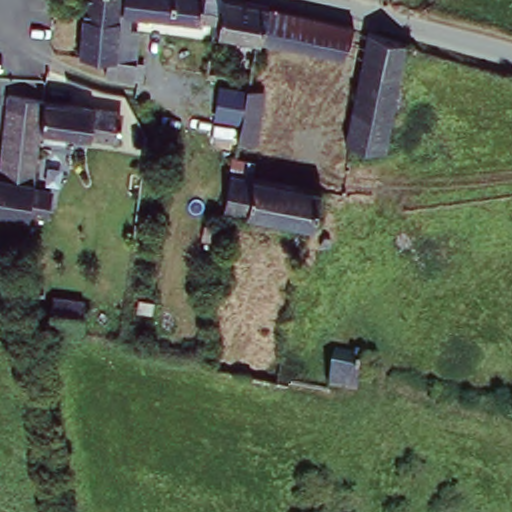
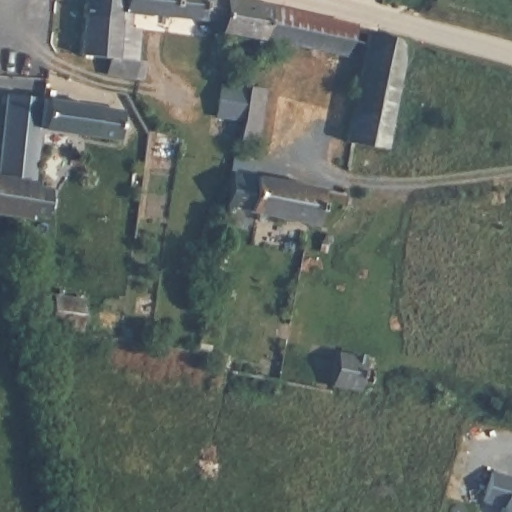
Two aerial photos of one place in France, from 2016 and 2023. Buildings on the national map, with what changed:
unchanged [(84,27),(87,0),(122,0),(115,45),(114,58),(137,61),(139,73),(105,66),(105,56),(80,51),(84,27)]
unchanged [(201,18),(129,14),(126,31),(131,36),(129,46),(115,45),(122,0),(223,0),(223,1),(270,8),(262,41),(225,36),(217,35),(213,34),(198,32),(201,18)]
unchanged [(349,56),(262,41),(270,8),(342,21),(357,26),(349,56)]
unchanged [(403,38),(382,145),(347,139),(362,58),(371,30),(403,38)]
unchanged [(245,117),(212,112),(219,84),(251,91),(245,117)]
unchanged [(265,91),(258,121),(246,142),(239,141),(240,135),(252,86),(265,91)]
unchanged [(25,208),(24,216),(0,212),(0,147),(7,111),(10,95),(39,98),(37,109),(120,109),(115,131),(34,133),(27,185),(46,190),(42,211),(25,208)]
unchanged [(230,165),(244,168),(242,176),(314,192),(307,226),(221,210),(230,165)]
unchanged [(54,294),(82,297),(79,328),(50,324),(54,294)]
unchanged [(373,387),(358,383),(357,391),(326,385),(330,358),(336,358),(362,362),(361,367),(377,370),(375,381),(373,387)]
new [(502,505),(483,501),(491,470),(512,476),(512,512),(500,512),(502,505)]

